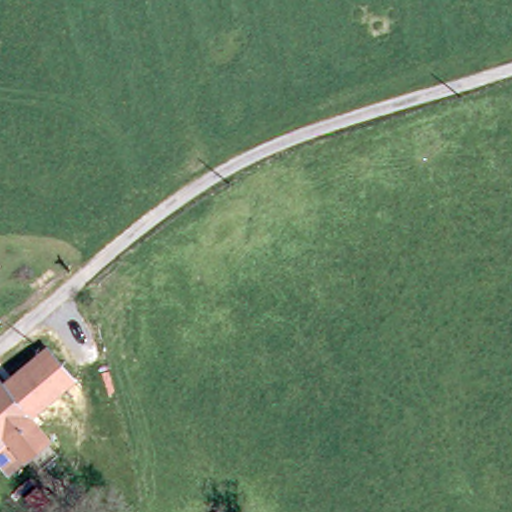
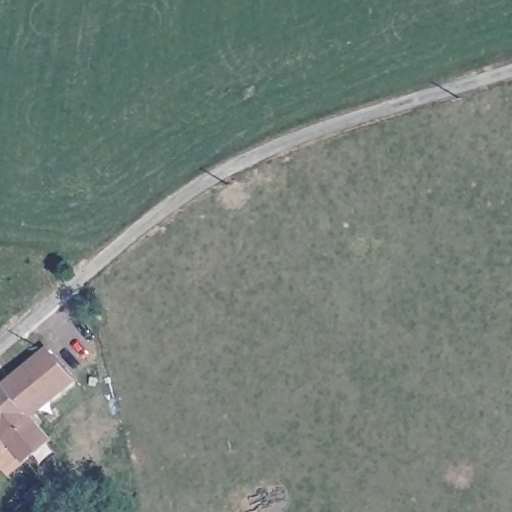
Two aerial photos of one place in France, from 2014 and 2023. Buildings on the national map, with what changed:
unchanged [(37,351),(55,373),(42,383),(52,397),(35,410),(4,377),(37,351)]
unchanged [(57,437),(12,474),(0,459),(0,380),(4,377),(35,410),(57,437)]

